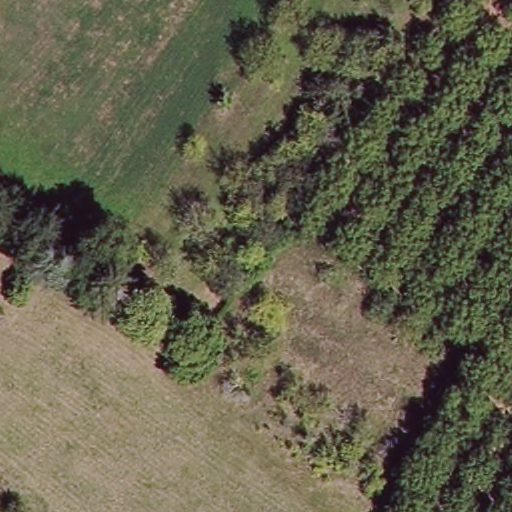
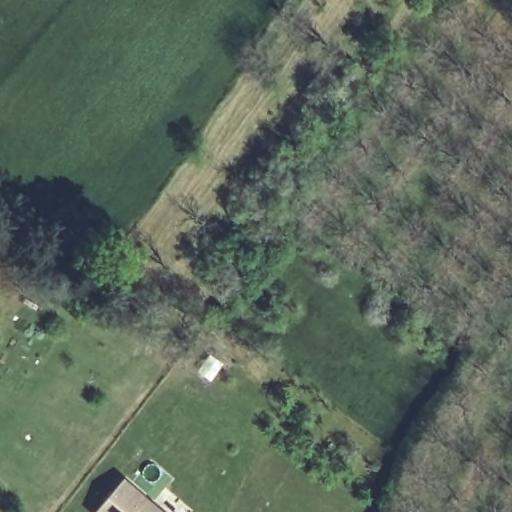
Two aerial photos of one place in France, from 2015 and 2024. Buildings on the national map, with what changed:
new [(166,512),(96,512),(124,477),(166,512)]

